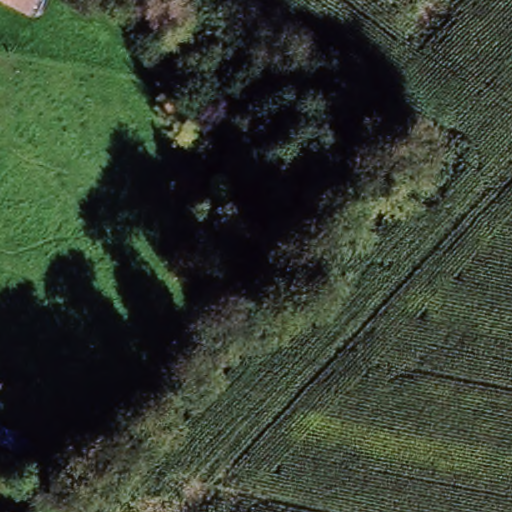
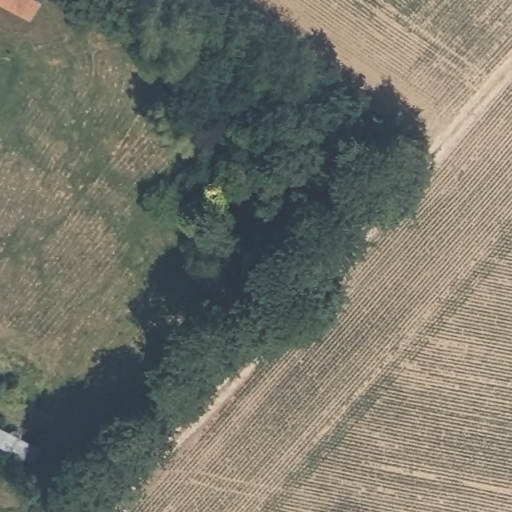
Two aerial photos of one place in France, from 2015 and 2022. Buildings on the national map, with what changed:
unchanged [(30,14),(6,0),(37,0),(30,14)]
unchanged [(24,462),(0,448),(0,423),(38,445),(24,462)]

